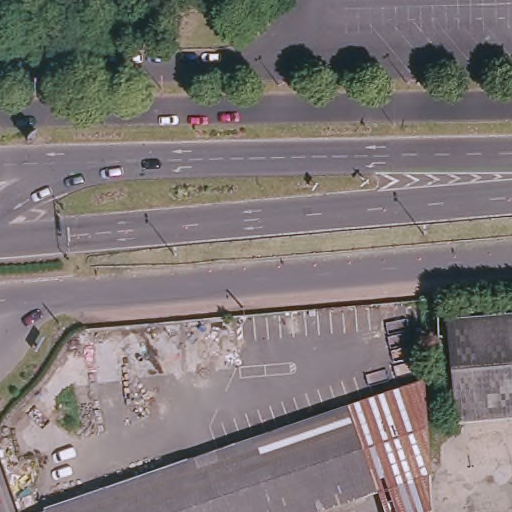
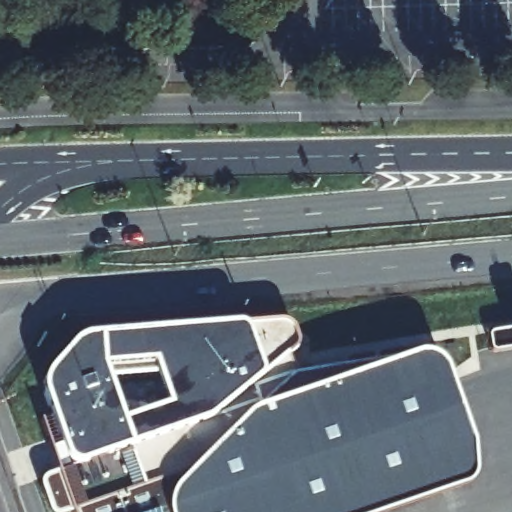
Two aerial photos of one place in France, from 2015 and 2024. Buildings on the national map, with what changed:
demolished [(444,317),(512,312),(512,415),(453,420),(444,317)]
new [(44,395),(43,386),(48,372),(73,344),(79,340),(90,336),(279,322),(289,324),(295,331),(298,347),(295,351),(289,356),(295,375),(421,355),(435,359),(446,371),(459,408),(464,480),(464,482),(461,485),(382,512),(50,512),(49,511),(41,488),(41,485),(43,479),(46,475),(69,468),(52,417),(44,395)]
demolished [(348,404),(378,489),(311,512),(38,512),(348,404)]
new [(69,468),(58,472),(40,421),(52,417),(69,468)]

